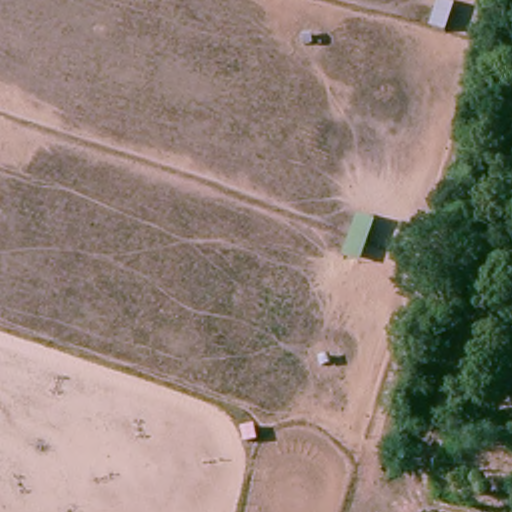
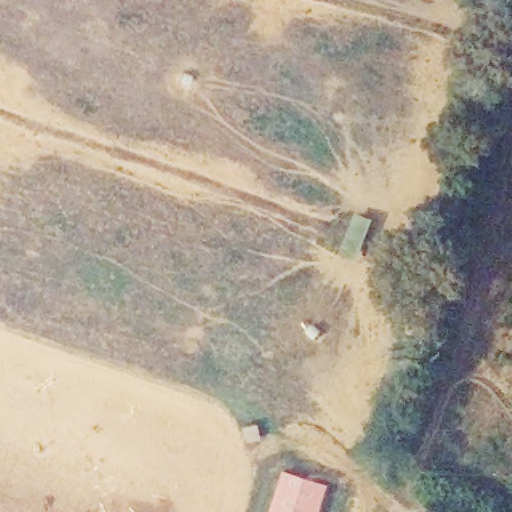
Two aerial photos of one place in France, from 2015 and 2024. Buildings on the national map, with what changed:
unchanged [(446,31),(427,25),(437,0),(441,0),(455,4),(446,31)]
unchanged [(375,219),(360,261),(341,254),(355,214),(375,219)]
new [(285,470),(329,484),(320,512),(272,512),(285,470)]

